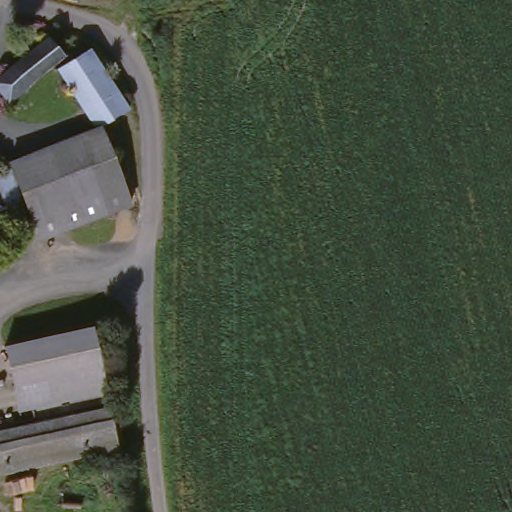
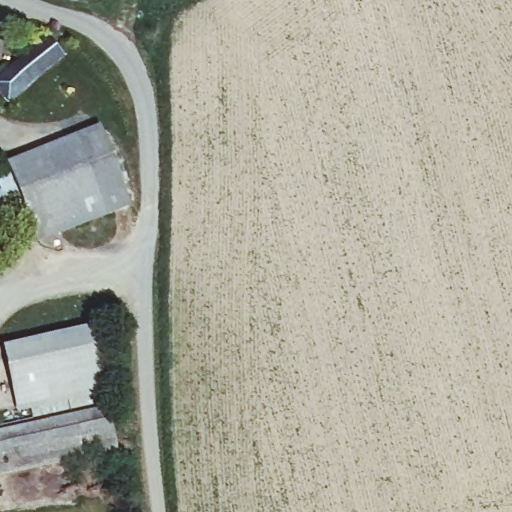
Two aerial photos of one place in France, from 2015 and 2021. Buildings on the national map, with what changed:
unchanged [(55,66),(8,96),(0,84),(0,70),(41,42),(55,66)]
demolished [(94,127),(54,71),(88,46),(128,106),(94,127)]
unchanged [(18,196),(5,170),(83,132),(96,159),(18,196)]
unchanged [(101,167),(108,181),(116,199),(38,237),(18,196),(96,159),(101,167)]
demolished [(113,162),(119,177),(108,181),(101,167),(113,162)]
unchanged [(0,205),(0,172),(5,170),(18,196),(9,200),(0,205)]
unchanged [(0,225),(0,205),(9,200),(18,216),(0,225)]
unchanged [(88,329),(96,373),(8,389),(2,345),(88,329)]
unchanged [(0,435),(59,423),(110,412),(112,425),(115,443),(0,469),(0,435)]

